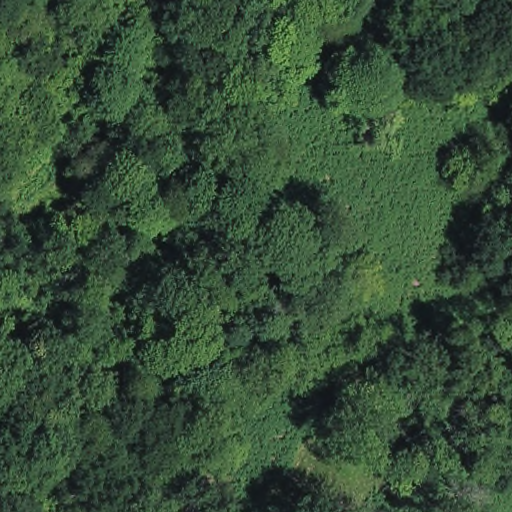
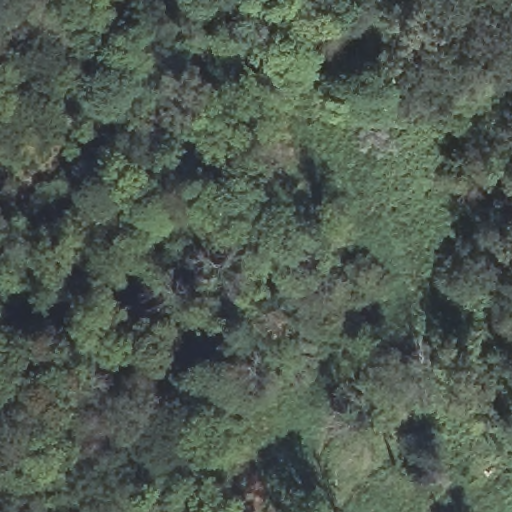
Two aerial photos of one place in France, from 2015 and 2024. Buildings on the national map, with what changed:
[]

